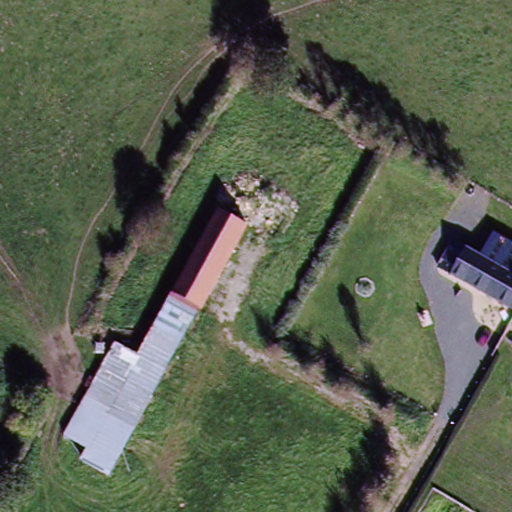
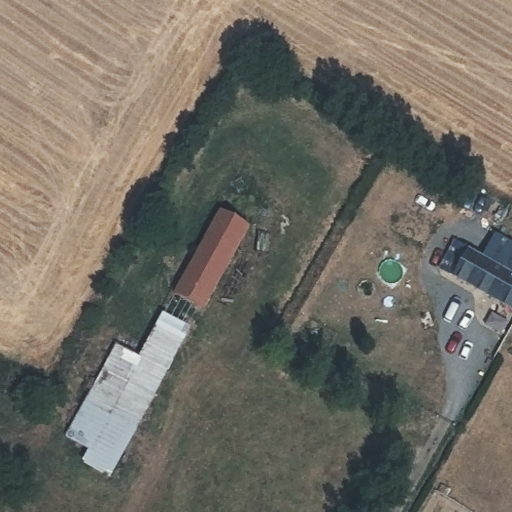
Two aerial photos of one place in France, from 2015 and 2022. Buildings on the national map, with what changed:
unchanged [(202,305),(177,290),(175,290),(176,288),(206,234),(222,205),(249,220),(233,249),(203,303),(202,305)]
unchanged [(512,234),(512,268),(482,249),(495,223),(512,234)]
unchanged [(442,260),(456,234),(482,249),(512,268),(512,303),(442,260)]
unchanged [(177,290),(202,305),(163,371),(140,355),(177,290)]
unchanged [(111,355),(119,343),(140,355),(90,443),(69,430),(111,355)]
unchanged [(163,371),(106,471),(82,457),(90,443),(140,355),(163,371)]

